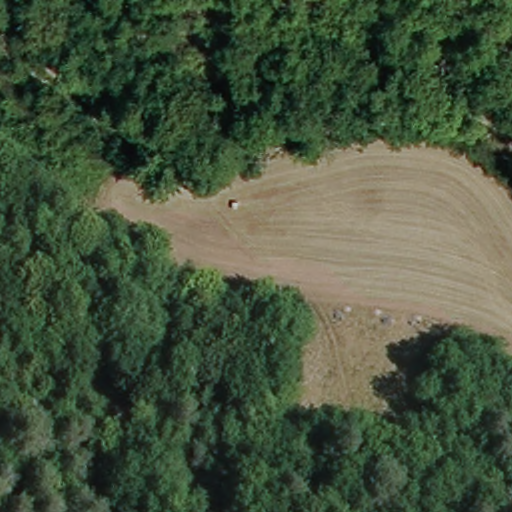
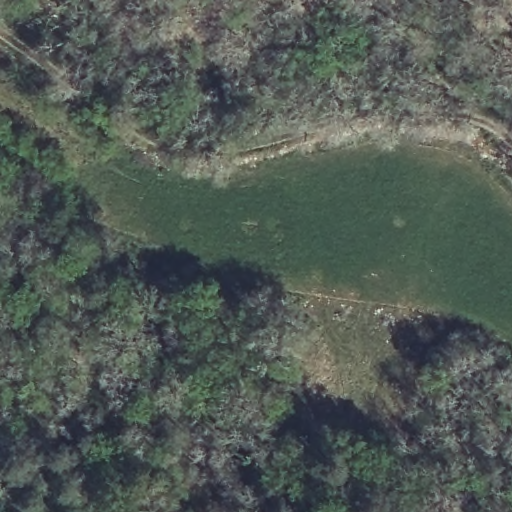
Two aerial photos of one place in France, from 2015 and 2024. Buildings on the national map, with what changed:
[]

